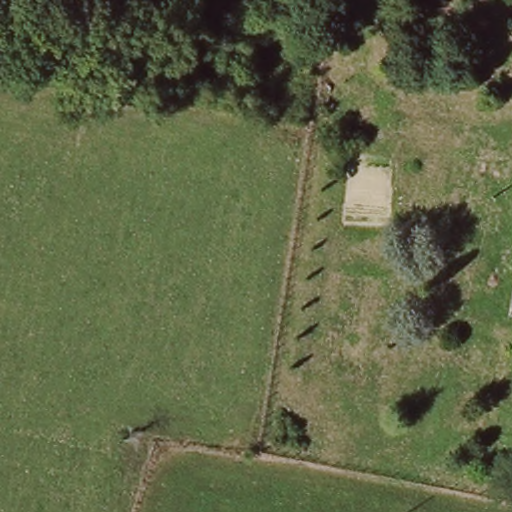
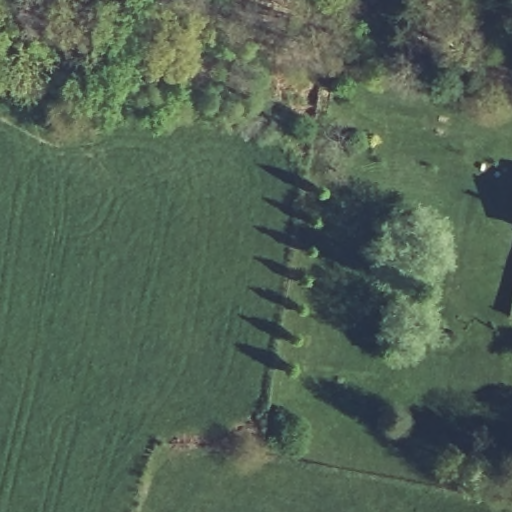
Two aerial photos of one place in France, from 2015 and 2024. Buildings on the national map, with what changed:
unchanged [(384,0),(400,0),(399,4),(384,0)]

